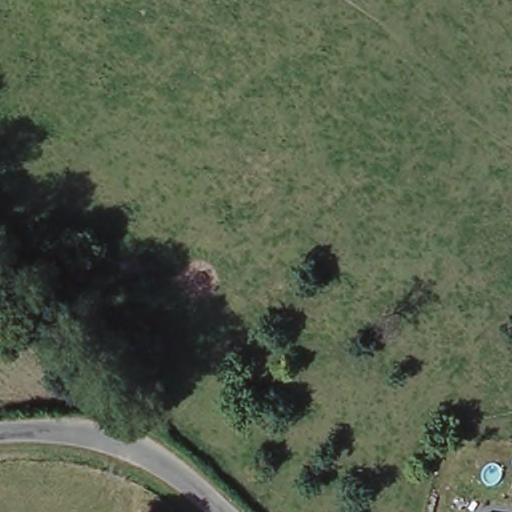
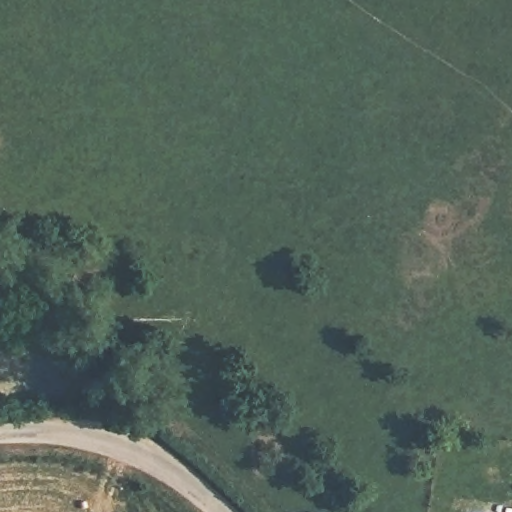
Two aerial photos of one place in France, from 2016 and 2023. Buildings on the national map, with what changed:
[]

